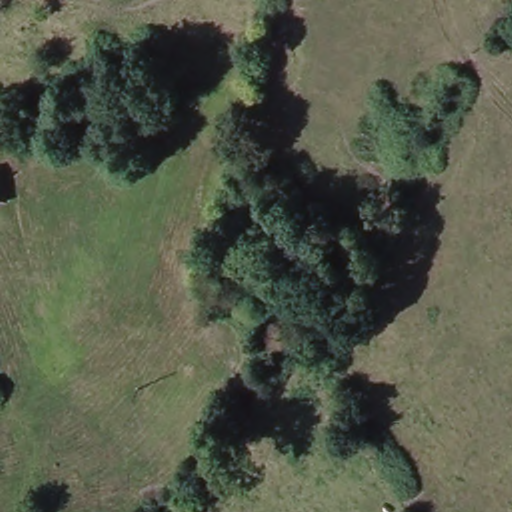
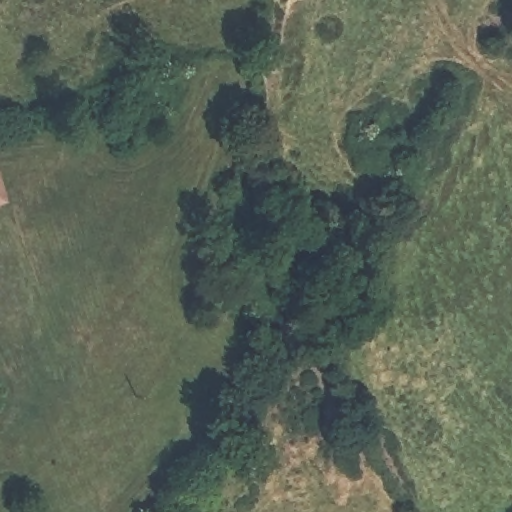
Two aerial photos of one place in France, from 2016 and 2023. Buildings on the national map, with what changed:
unchanged [(0,208),(0,177),(9,207),(0,208)]

